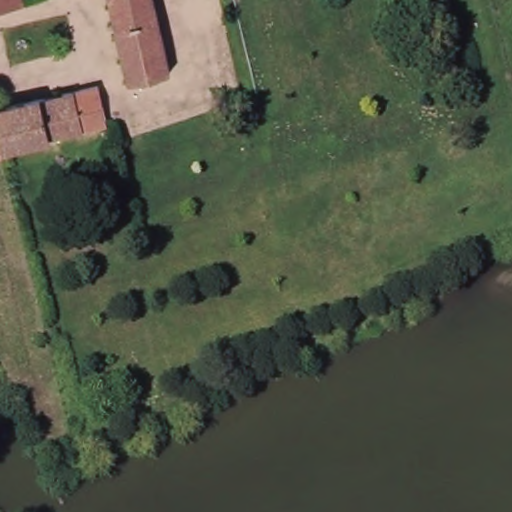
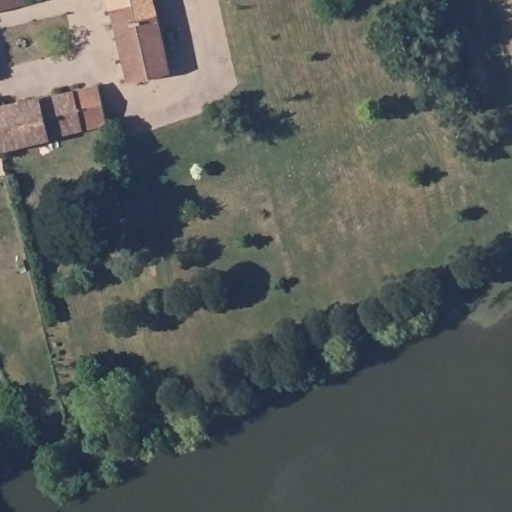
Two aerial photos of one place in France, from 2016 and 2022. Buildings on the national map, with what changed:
unchanged [(0,9),(0,0),(22,0),(23,5),(0,9)]
unchanged [(126,83),(107,0),(153,0),(169,73),(126,83)]
unchanged [(97,85),(106,124),(0,149),(0,107),(97,85)]

